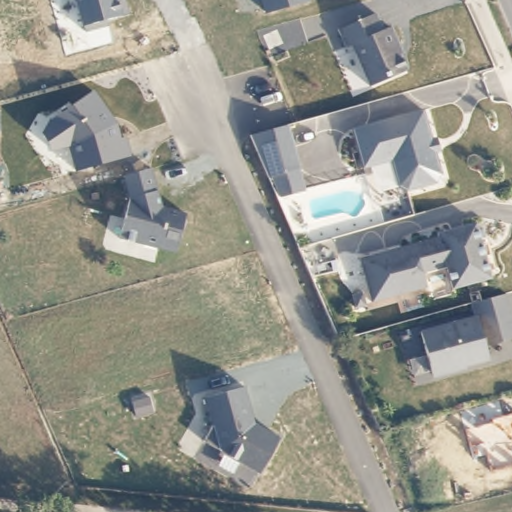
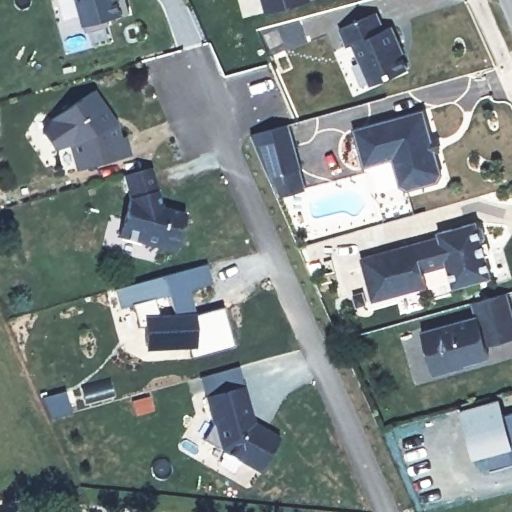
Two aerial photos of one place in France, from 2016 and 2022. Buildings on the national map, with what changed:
unchanged [(76,0),(124,0),(128,15),(84,26),(76,0)]
unchanged [(258,0),(314,0),(315,4),(263,16),(258,0)]
unchanged [(386,34),(394,32),(399,51),(397,51),(404,77),(366,87),(353,44),(348,46),(342,27),(381,16),(386,34)]
unchanged [(115,123),(121,162),(75,171),(67,148),(53,152),(41,132),(45,124),(95,91),(115,123)]
unchanged [(422,112),(440,176),(436,184),(405,193),(398,188),(390,162),(362,170),(351,131),(422,112)]
unchanged [(303,170),(271,184),(250,138),(252,138),(284,129),(303,170)]
unchanged [(138,244),(116,239),(126,200),(120,177),(148,169),(159,208),(182,215),(173,249),(172,253),(138,244)]
unchanged [(443,265),(420,271),(424,285),(369,301),(358,262),(399,251),(398,246),(435,235),(434,231),(473,220),(474,223),(479,226),(482,235),(479,241),(488,276),(449,287),(443,265)]
new [(206,264),(213,285),(190,291),(197,314),(222,308),(233,348),(191,358),(189,349),(146,351),(144,332),(132,308),(121,310),(115,290),(206,264)]
unchanged [(503,291),(512,324),(512,335),(482,344),(486,357),(430,372),(419,331),(474,315),(470,301),(503,291)]
unchanged [(259,421),(283,433),(261,474),(202,440),(212,425),(205,399),(249,387),(259,421)]
unchanged [(487,455),(473,460),(460,409),(500,399),(505,416),(512,414),(512,464),(490,470),(487,455)]

